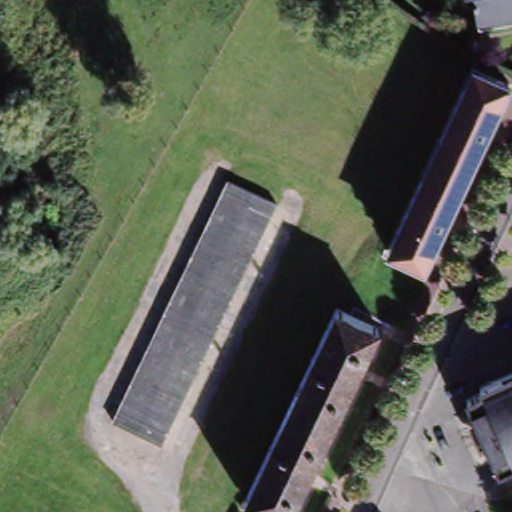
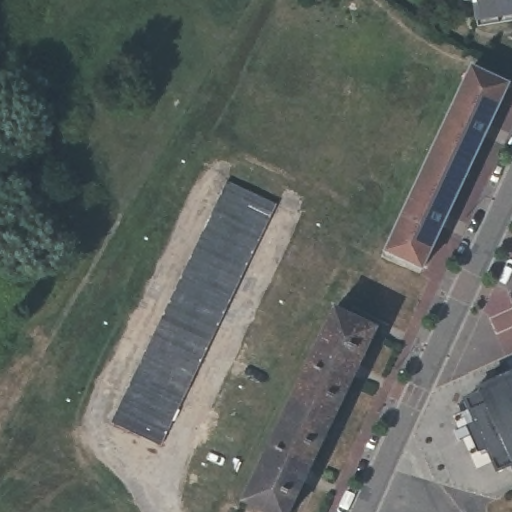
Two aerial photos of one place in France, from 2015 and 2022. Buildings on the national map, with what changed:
unchanged [(468,0),(512,0),(512,10),(471,19),(468,0)]
unchanged [(503,83),(423,264),(387,247),(469,67),(503,83)]
unchanged [(276,200),(156,442),(108,417),(227,177),(276,200)]
unchanged [(378,327),(285,512),(270,512),(240,497),(334,305),(378,327)]
unchanged [(495,474),(464,404),(479,397),(476,392),(512,375),(512,470),(511,467),(495,474)]

